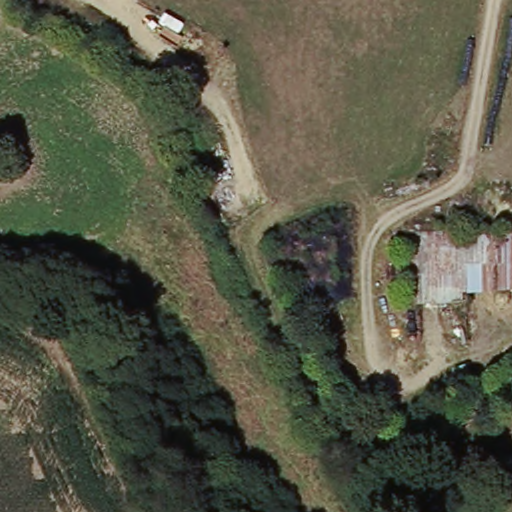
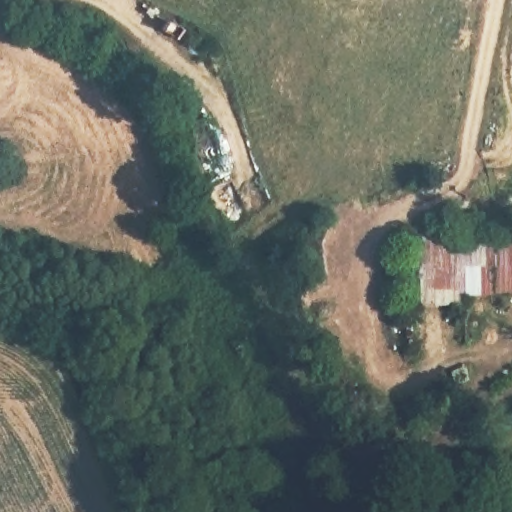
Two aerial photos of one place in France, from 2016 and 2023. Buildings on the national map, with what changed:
unchanged [(467,305),(414,305),(410,237),(512,234),(512,294),(466,295),(467,305)]

